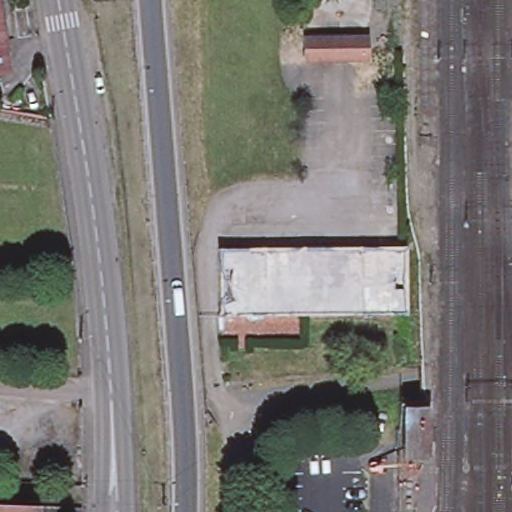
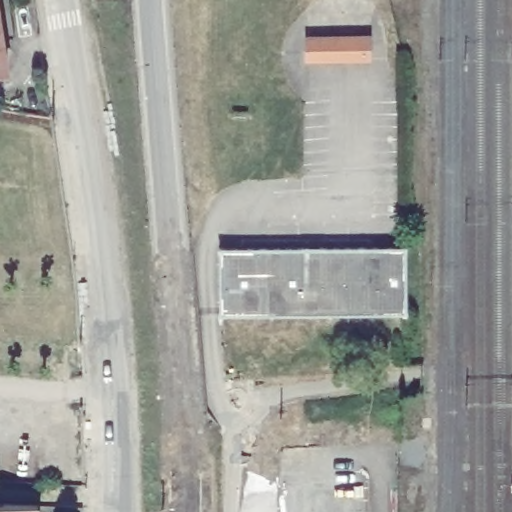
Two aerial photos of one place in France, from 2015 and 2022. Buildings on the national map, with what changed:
unchanged [(0,67),(0,36),(5,66),(0,67)]
unchanged [(305,38),(365,37),(365,55),(305,56),(305,38)]
unchanged [(216,245),(400,244),(402,244),(403,311),(401,311),(217,313),(216,245)]
unchanged [(407,405),(425,406),(424,458),(405,457),(407,405)]
unchanged [(35,512),(0,512),(0,501),(35,503),(35,512)]

